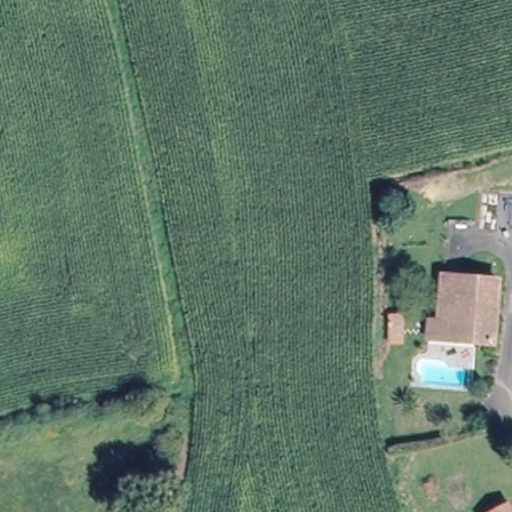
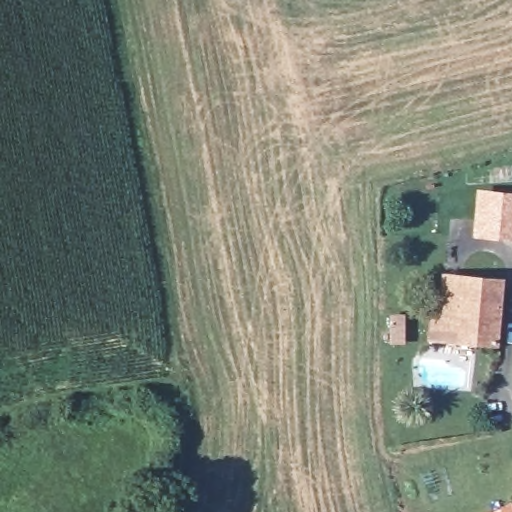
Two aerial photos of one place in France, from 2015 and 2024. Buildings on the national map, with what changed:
new [(476,187),(512,190),(512,240),(471,236),(476,187)]
unchanged [(426,312),(440,313),(445,266),(497,271),(491,333),(455,330),(425,327),(426,312)]
unchanged [(400,320),(411,320),(412,342),(401,342),(400,320)]
unchanged [(512,507),(512,512),(494,512),(510,504),(512,507)]

